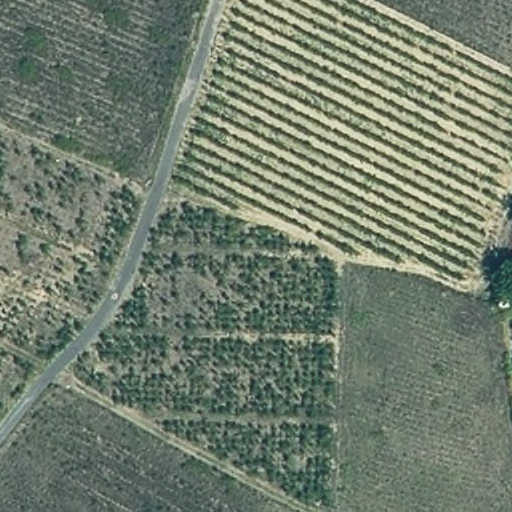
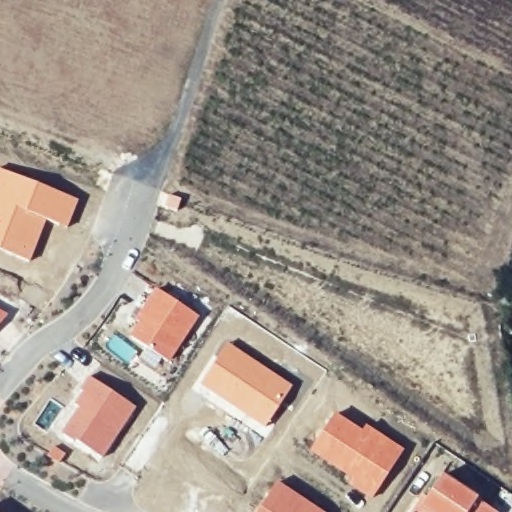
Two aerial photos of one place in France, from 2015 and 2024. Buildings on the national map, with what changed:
new [(78,200),(67,229),(47,221),(30,262),(0,249),(0,167),(78,200)]
new [(137,320),(134,318),(155,286),(200,316),(169,362),(127,334),(137,320)]
unchanged [(511,289),(507,309),(493,308),(496,286),(511,289)]
new [(7,314),(0,323),(0,310),(7,314)]
new [(227,341),(294,385),(263,431),(199,384),(227,341)]
new [(75,408),(70,405),(90,374),(137,406),(102,458),(59,432),(75,408)]
new [(334,414),(360,430),(365,424),(404,450),(372,499),(346,481),(348,477),(310,450),(334,414)]
new [(496,512),(413,512),(440,475),(496,512)]
new [(327,512),(255,512),(277,479),(327,512)]

